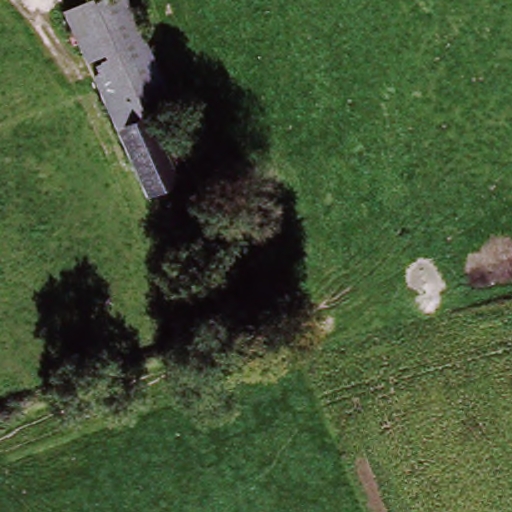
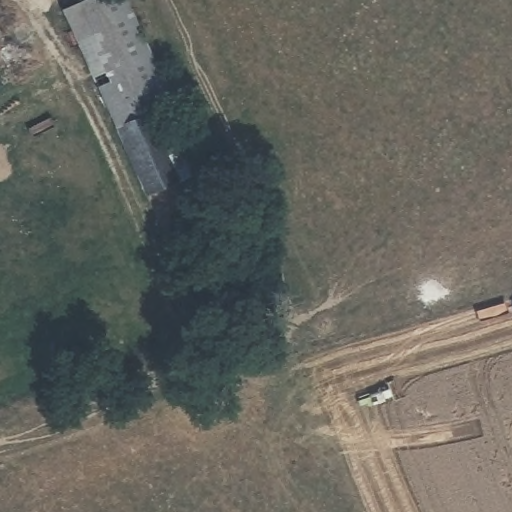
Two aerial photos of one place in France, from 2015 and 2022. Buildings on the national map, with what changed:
unchanged [(77,14),(118,0),(119,0),(164,107),(162,118),(145,124),(119,133),(77,14)]
unchanged [(170,188),(142,199),(119,133),(145,124),(170,188)]

